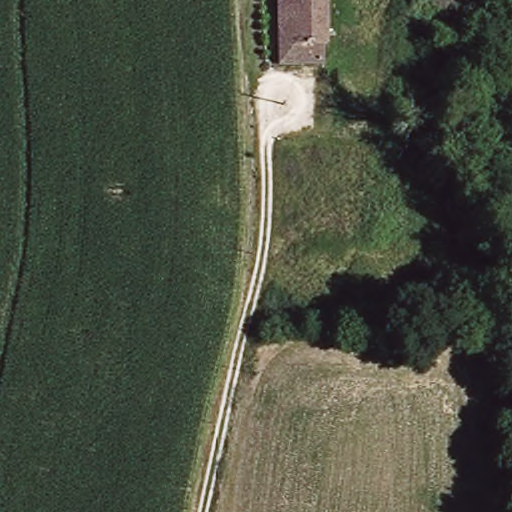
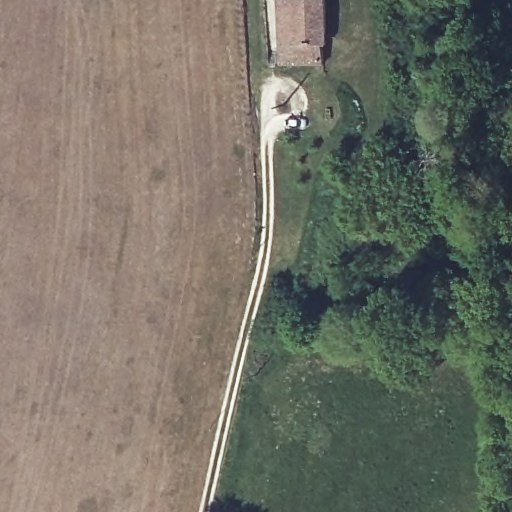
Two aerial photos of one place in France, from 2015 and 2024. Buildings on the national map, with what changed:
unchanged [(277,0),(323,0),(323,45),(318,45),(319,60),(278,62),(277,51),(277,11),(277,0)]

